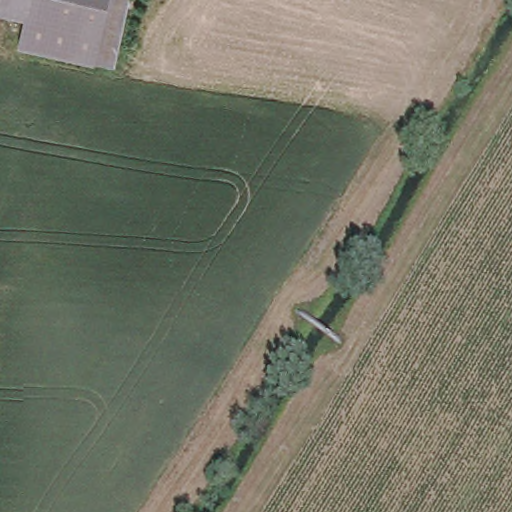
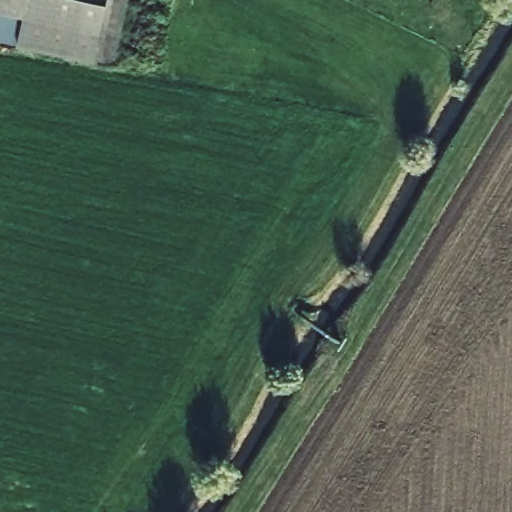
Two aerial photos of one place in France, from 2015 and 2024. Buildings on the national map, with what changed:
unchanged [(19,49),(25,20),(0,14),(0,0),(134,0),(117,71),(19,49)]

